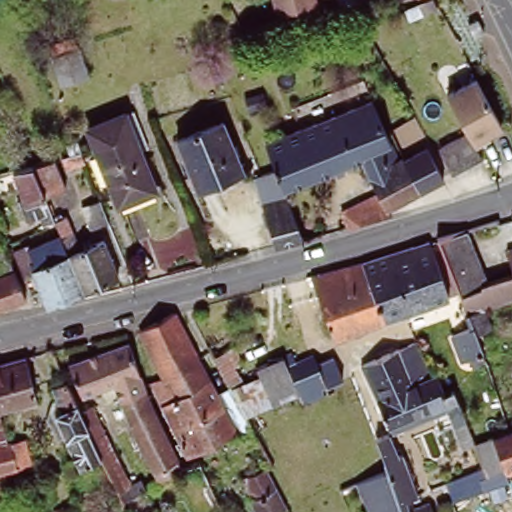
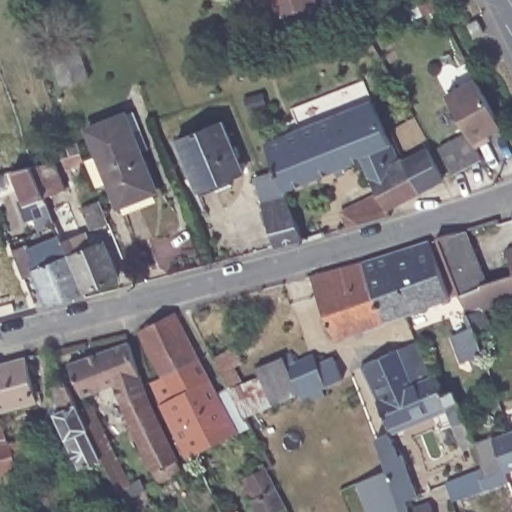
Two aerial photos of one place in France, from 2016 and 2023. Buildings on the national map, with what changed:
unchanged [(274,0),(315,0),(316,4),(278,14),(274,0)]
unchanged [(342,16),(337,0),(366,0),(369,9),(357,13),(342,16)]
unchanged [(62,84),(52,55),(76,47),(87,77),(62,84)]
unchanged [(476,78),(502,125),(487,133),(490,138),(476,145),(467,131),(447,93),(476,78)]
unchanged [(388,211),(392,219),(349,230),(342,215),(378,199),(360,161),(284,194),(276,173),(265,146),(373,105),(397,168),(406,163),(427,152),(442,183),(421,194),(388,211)]
unchanged [(117,204),(88,129),(125,114),(155,190),(117,204)]
unchanged [(198,189),(177,139),(222,119),(242,170),(198,189)]
unchanged [(452,173),(437,146),(467,131),(476,145),(482,158),(452,173)]
unchanged [(67,169),(62,157),(70,154),(81,151),(86,163),(67,169)]
unchanged [(44,224),(40,215),(27,219),(19,199),(24,198),(15,169),(32,165),(53,159),(65,189),(45,196),(55,219),(44,224)]
unchanged [(274,250),(255,181),(260,179),(276,173),(284,194),(302,242),(274,250)]
unchanged [(91,229),(82,205),(100,199),(109,222),(91,229)]
unchanged [(66,215),(78,249),(102,239),(117,277),(83,290),(61,235),(55,219),(66,215)]
unchanged [(467,230),(487,286),(482,288),(482,289),(463,295),(440,238),(467,230)]
unchanged [(46,305),(34,273),(22,277),(12,250),(27,245),(28,249),(61,235),(83,290),(46,305)]
unchanged [(366,261),(435,240),(453,298),(387,322),(366,261)]
unchanged [(0,248),(5,247),(14,270),(25,298),(0,306),(0,248)]
unchanged [(508,253),(512,252),(512,266),(508,253)]
unchanged [(337,339),(314,275),(366,261),(387,322),(337,339)]
unchanged [(487,309),(496,330),(479,337),(469,309),(463,295),(482,289),(482,288),(487,286),(512,278),(512,302),(487,309)]
unchanged [(491,367),(470,374),(455,335),(460,334),(452,315),(469,309),(479,337),(491,367)]
unchanged [(144,343),(139,333),(172,317),(187,340),(200,361),(164,379),(160,373),(142,382),(129,351),(144,343)]
unchanged [(417,342),(434,379),(439,376),(443,383),(460,376),(465,389),(457,392),(480,444),(467,448),(445,405),(390,429),(363,366),(397,351),(417,342)]
unchanged [(129,351),(142,382),(156,416),(180,466),(173,468),(175,472),(160,478),(156,467),(154,468),(112,384),(81,395),(69,366),(127,344),(129,351)]
unchanged [(344,379),(322,389),(325,394),(305,404),(300,394),(274,406),(256,369),(291,353),(296,362),(312,355),(316,363),(333,355),(344,379)]
unchanged [(41,400),(0,411),(0,364),(30,356),(41,400)]
unchanged [(239,433),(190,459),(149,387),(164,379),(200,361),(239,433)]
unchanged [(78,414),(81,419),(101,461),(84,468),(71,441),(69,442),(57,416),(57,410),(60,409),(51,389),(63,384),(78,414)]
unchanged [(94,407),(133,488),(146,482),(150,492),(129,503),(124,505),(105,468),(101,461),(81,419),(78,414),(94,407)]
unchanged [(31,438),(37,461),(29,463),(0,471),(0,424),(6,444),(31,438)]
unchanged [(505,469),(510,481),(457,504),(446,482),(484,466),(476,445),(480,444),(496,436),(512,431),(512,466),(505,469)]
unchanged [(390,433),(400,455),(404,453),(420,495),(409,499),(413,508),(435,499),(440,512),(372,512),(360,483),(389,471),(386,459),(384,461),(376,438),(390,433)]
unchanged [(286,509),(281,512),(257,512),(241,483),(266,471),(286,509)]
unchanged [(0,505),(2,512),(0,512),(0,505)]
unchanged [(232,508),(235,512),(225,512),(232,508)]

